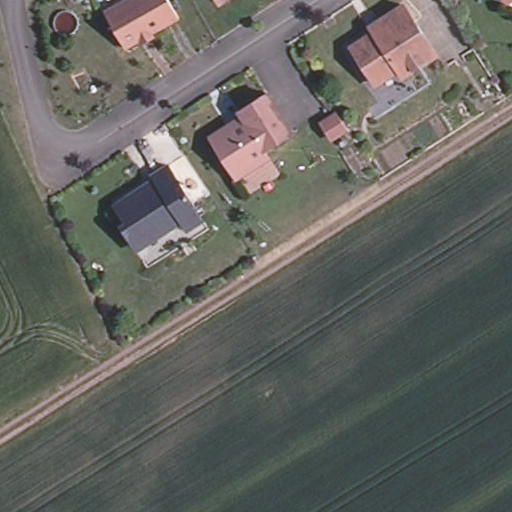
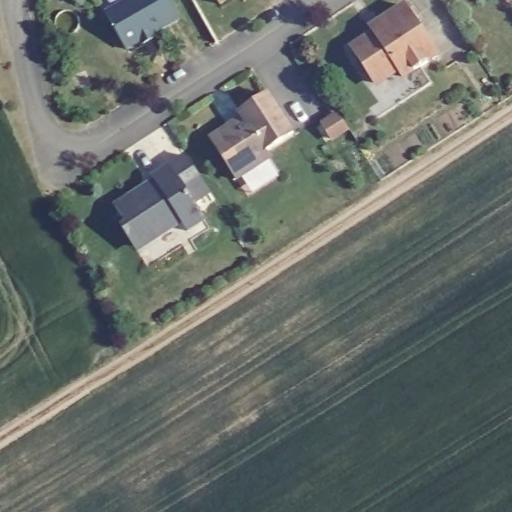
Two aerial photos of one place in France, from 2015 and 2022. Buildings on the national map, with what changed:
unchanged [(145,39),(131,46),(110,10),(129,0),(176,0),(185,15),(157,31),(160,36),(147,44),(145,39)]
unchanged [(378,76),(367,63),(361,53),(354,39),(375,25),(372,19),(380,14),(401,0),(407,0),(437,48),(403,69),(407,74),(385,88),(378,76)]
unchanged [(273,91),(299,130),(272,149),(277,155),(243,178),(215,136),(233,124),(247,115),(244,110),(273,91)]
unchanged [(348,133),(347,133),(333,142),(322,125),(337,115),(348,133)]
unchanged [(132,220),(121,204),(154,183),(157,187),(162,184),(157,174),(175,164),(210,219),(192,229),(187,220),(160,238),(157,234),(140,244),(127,224),(132,220)]

